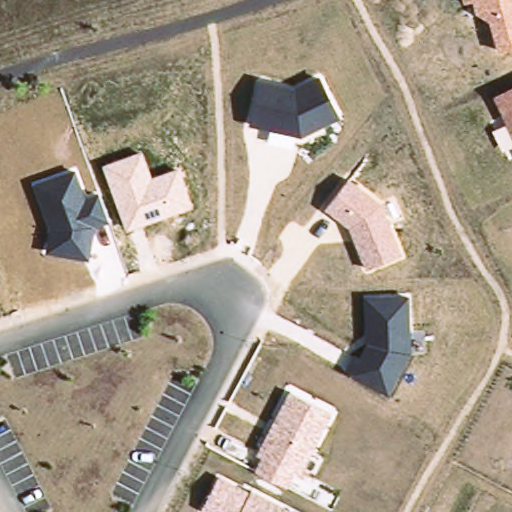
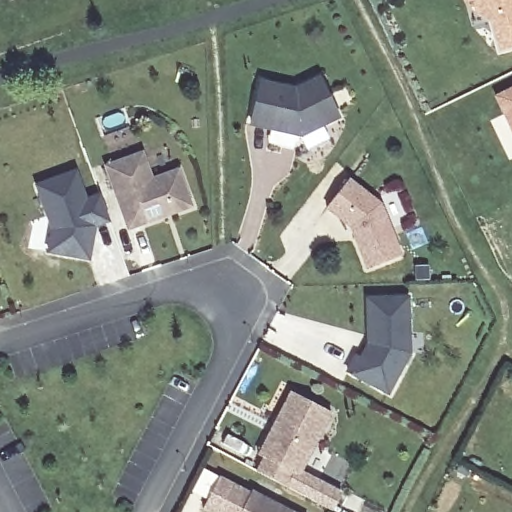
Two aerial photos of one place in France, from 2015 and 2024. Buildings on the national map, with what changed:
unchanged [(490,21),(476,16),(473,2),(463,5),(462,0),(512,0),(512,45),(497,49),(490,21)]
unchanged [(342,116),(301,137),(249,124),(259,78),(293,85),(320,74),(342,116)]
unchanged [(512,86),(512,128),(496,94),(512,86)]
unchanged [(143,151),(153,177),(179,169),(193,209),(128,230),(103,164),(143,151)]
unchanged [(75,167),(86,197),(98,192),(109,221),(96,226),(90,259),(47,252),(51,232),(33,182),(75,167)]
unchanged [(382,202),(403,255),(366,270),(351,229),(325,210),(350,177),(382,202)]
unchanged [(412,353),(390,394),(353,374),(368,344),(365,295),(409,292),(412,353)]
unchanged [(332,412),(293,487),(250,466),(288,391),(332,412)]
unchanged [(242,512),(201,512),(200,512),(219,476),(252,493),(242,512)]
unchanged [(299,512),(242,512),(254,490),(299,512)]

